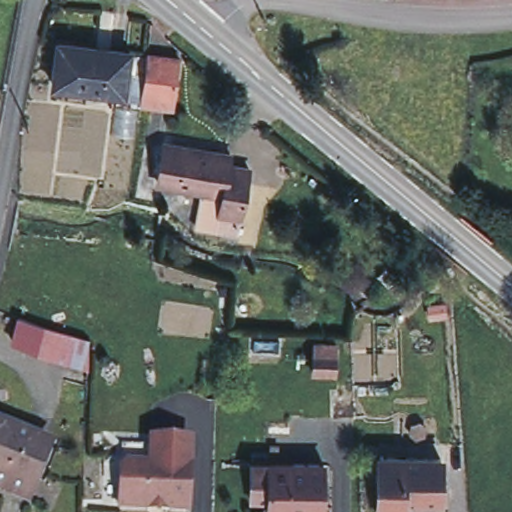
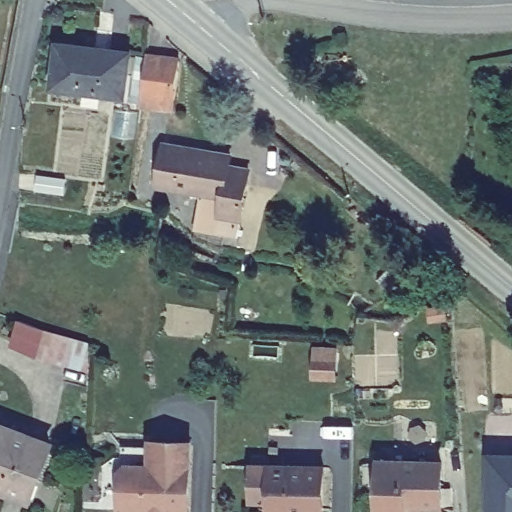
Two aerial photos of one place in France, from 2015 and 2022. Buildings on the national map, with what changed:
unchanged [(129,52),(124,96),(52,87),(57,43),(129,52)]
unchanged [(179,61),(174,107),(140,104),(145,56),(179,61)]
unchanged [(229,161),(227,172),(247,175),(240,225),(218,221),(220,202),(177,195),(177,191),(157,188),(163,149),(229,161)]
unchanged [(87,344),(87,370),(33,353),(41,328),(87,344)]
unchanged [(337,350),(336,377),(313,377),(314,350),(337,350)]
unchanged [(27,496),(0,485),(0,421),(49,441),(27,496)]
unchanged [(128,462),(154,462),(155,436),(193,437),(191,507),(167,507),(167,502),(154,502),(154,506),(122,505),(124,466),(128,462)]
new [(485,512),(486,451),(512,452),(512,512),(485,512)]
unchanged [(282,462),(280,510),(267,510),(267,497),(249,497),(249,461),(282,462)]
unchanged [(322,462),(322,505),(290,505),(290,510),(280,510),(282,462),(322,462)]
unchanged [(442,466),(440,508),(419,507),(419,512),(377,512),(379,462),(442,466)]

